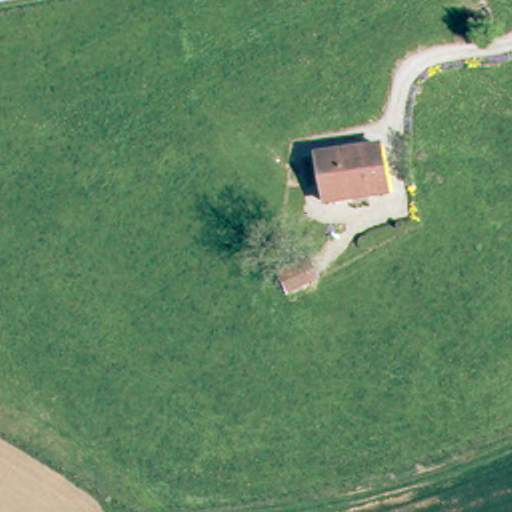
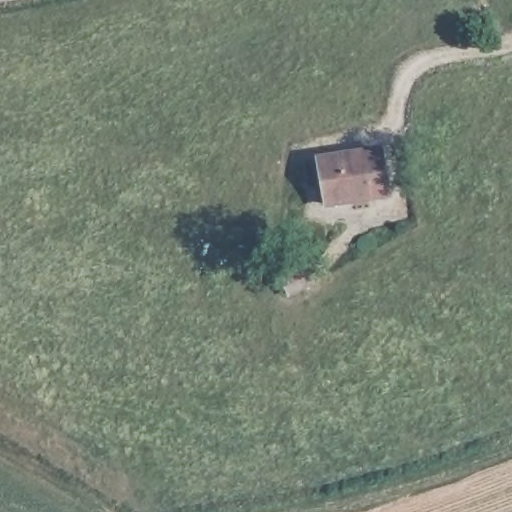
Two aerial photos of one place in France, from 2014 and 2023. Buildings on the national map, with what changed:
unchanged [(392,196),(327,206),(321,159),(384,149),(392,196)]

